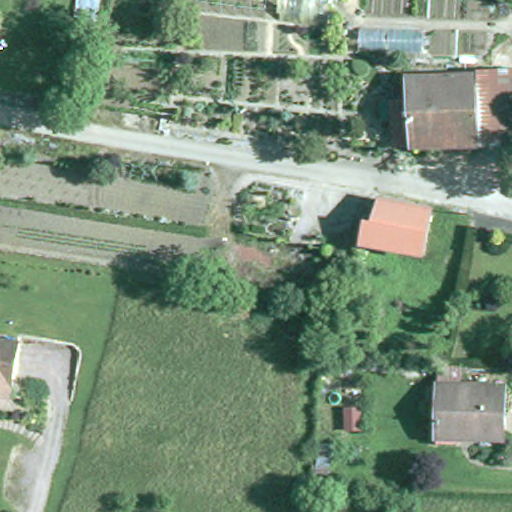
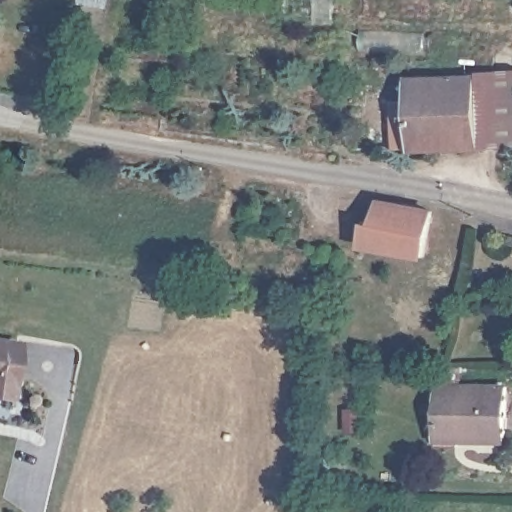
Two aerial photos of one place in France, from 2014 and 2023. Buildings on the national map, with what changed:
unchanged [(473,76),(475,76),(474,71),(490,71),(512,70),(512,145),(477,147),(473,76)]
unchanged [(477,147),(392,149),(387,101),(402,101),(402,79),(465,77),(473,76),(477,147)]
unchanged [(446,243),(421,239),(419,251),(356,240),(361,216),(369,218),(374,196),(428,206),(426,216),(451,219),(446,243)]
unchanged [(14,345),(5,400),(0,399),(0,343),(14,345)]
unchanged [(431,430),(428,430),(429,386),(496,387),(496,440),(465,439),(431,439),(431,430)]
unchanged [(319,473),(322,456),(332,456),(329,474),(319,473)]

